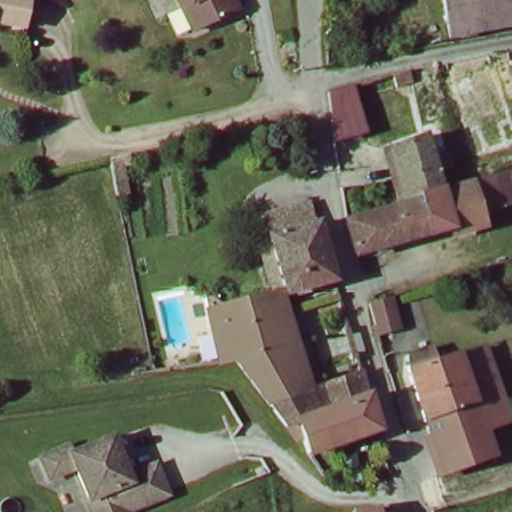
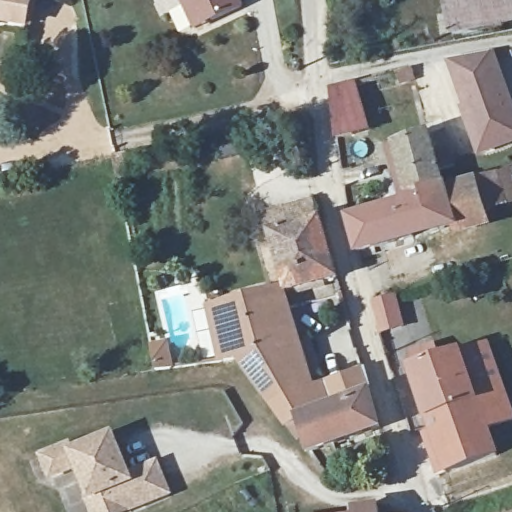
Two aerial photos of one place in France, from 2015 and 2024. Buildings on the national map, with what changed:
unchanged [(22,16),(5,12),(3,21),(0,21),(0,0),(25,0),(22,16)]
unchanged [(184,0),(238,0),(239,4),(224,11),(210,16),(194,24),(184,0)]
unchanged [(444,0),(512,0),(512,23),(451,34),(444,0)]
new [(466,130),(457,108),(461,107),(446,67),(486,53),(510,117),(512,122),(512,139),(506,141),(485,149),(474,153),(466,130)]
unchanged [(327,92),(354,82),(370,132),(339,140),(327,92)]
unchanged [(401,165),(395,140),(427,129),(430,133),(443,181),(439,182),(407,191),(401,165)]
unchanged [(454,220),(444,183),(475,173),(494,167),(504,196),(484,203),(486,211),(454,220)]
unchanged [(454,220),(449,222),(408,233),(364,245),(357,246),(356,244),(347,213),(349,212),(359,210),(387,202),(398,198),(407,191),(439,182),(443,181),(444,183),(454,220)]
unchanged [(301,292),(287,295),(274,254),(269,238),(301,229),(320,223),(321,228),(336,280),(336,282),(301,292)]
unchanged [(370,299),(395,292),(405,327),(379,335),(370,299)]
unchanged [(302,453),(301,448),(299,445),(287,429),(282,423),(273,411),(254,387),(253,385),(236,363),(226,365),(218,366),(210,336),(213,335),(210,318),(210,316),(209,313),(215,312),(216,312),(222,310),(247,303),(261,299),(262,299),(267,298),(268,298),(270,299),(285,307),(287,312),(297,345),(307,377),(312,392),(317,408),(319,413),(324,411),(327,410),(321,392),(334,388),(335,390),(365,384),(369,396),(375,417),(379,432),(332,449),(307,457),(305,453),(302,453)]
unchanged [(457,367),(474,412),(499,404),(498,398),(512,394),(512,422),(508,424),(512,437),(512,439),(487,449),(490,458),(439,476),(425,432),(412,394),(403,371),(413,367),(410,356),(428,351),(432,361),(454,355),(455,359),(457,367)]
unchanged [(480,351),(488,371),(498,398),(499,404),(474,412),(457,367),(455,359),(480,351)]
unchanged [(87,496),(86,492),(79,474),(75,463),(49,473),(42,452),(68,442),(70,449),(75,448),(111,433),(128,473),(155,461),(157,468),(164,484),(166,490),(160,493),(135,503),(115,512),(114,512),(91,512),(85,496),(87,496)]
unchanged [(376,506),(377,510),(377,512),(350,512),(350,508),(376,506)]

